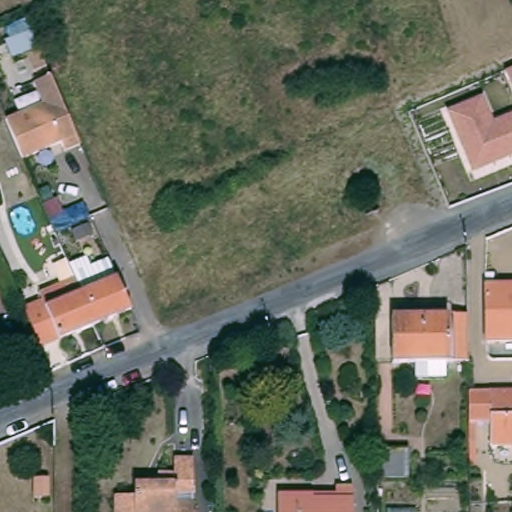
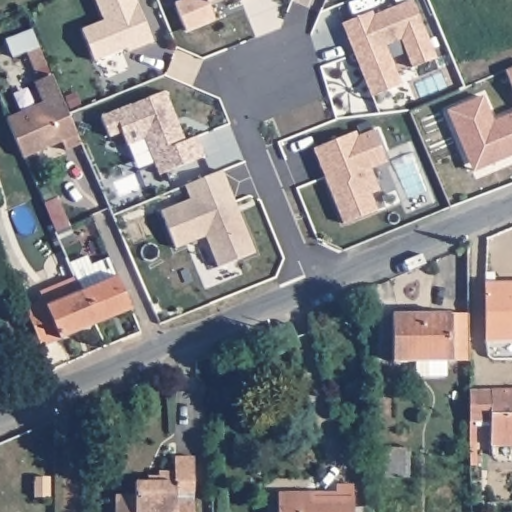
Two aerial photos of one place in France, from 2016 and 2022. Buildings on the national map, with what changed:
new [(126,49),(94,62),(81,31),(103,22),(95,0),(135,0),(152,43),(137,49),(128,53),(126,49)]
new [(183,0),(216,0),(207,3),(214,20),(185,31),(174,3),(183,0)]
new [(351,42),(349,39),(348,39),(341,23),(371,12),(373,16),(412,1),(434,56),(412,66),(400,37),(384,44),(400,83),(373,96),(371,96),(351,42)]
unchanged [(1,64),(0,60),(0,26),(29,15),(41,48),(28,53),(1,64)]
unchanged [(41,48),(81,145),(67,150),(63,141),(24,155),(8,115),(43,100),(36,79),(28,53),(41,48)]
unchanged [(505,75),(512,72),(512,90),(505,75)]
new [(164,92),(184,140),(195,135),(204,157),(159,175),(144,139),(127,146),(121,132),(108,138),(100,117),(164,92)]
unchanged [(464,160),(445,115),(478,102),(490,125),(512,116),(512,158),(487,168),(471,175),(464,160)]
new [(355,132),(357,137),(360,135),(356,126),(368,121),(386,161),(370,167),(378,189),(370,193),(376,209),(343,223),(313,149),(355,132)]
new [(185,186),(221,171),(236,207),(241,220),(254,252),(217,267),(204,236),(175,248),(160,211),(189,199),(185,186)]
unchanged [(84,291),(120,275),(135,310),(99,325),(84,291)]
unchanged [(45,348),(39,331),(29,308),(44,302),(41,295),(79,278),(84,291),(99,325),(45,348)]
unchanged [(490,342),(489,281),(506,280),(512,280),(512,342),(490,342)]
unchanged [(472,350),(472,360),(450,360),(450,375),(418,375),(418,361),(396,362),(396,314),(430,313),(472,313),(472,350)]
unchanged [(512,388),(512,446),(496,446),(494,421),(473,421),(472,389),(472,388),(512,388)]
unchanged [(407,448),(407,476),(377,477),(377,448),(407,448)]
unchanged [(177,493),(177,502),(195,502),(196,512),(118,512),(118,497),(137,497),(137,483),(159,483),(159,473),(175,472),(175,458),(194,459),(195,493),(177,493)]
unchanged [(316,497),(340,497),(340,489),(356,489),(357,512),(284,512),(284,496),(316,497)]

